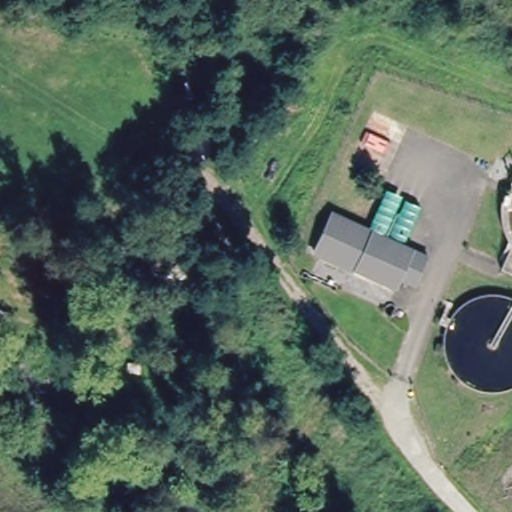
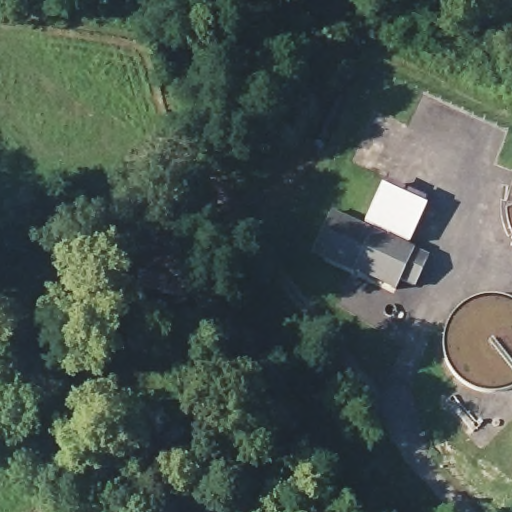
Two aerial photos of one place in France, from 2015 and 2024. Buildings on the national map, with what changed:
new [(362,227),(383,182),(428,202),(406,247),(362,227)]
unchanged [(176,216),(166,277),(140,258),(147,212),(176,216)]
unchanged [(332,213),(362,227),(406,247),(428,257),(415,286),(400,279),(396,288),(314,250),(332,213)]

